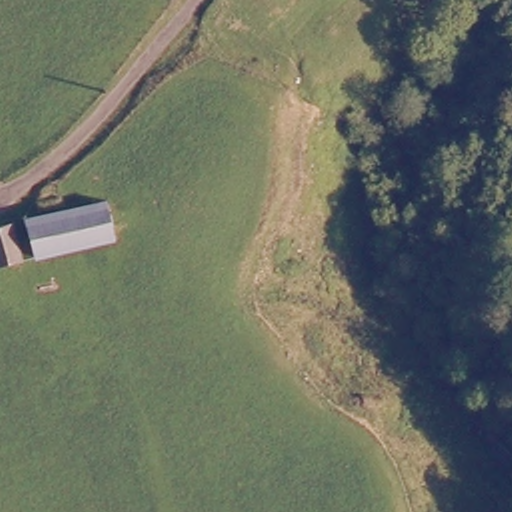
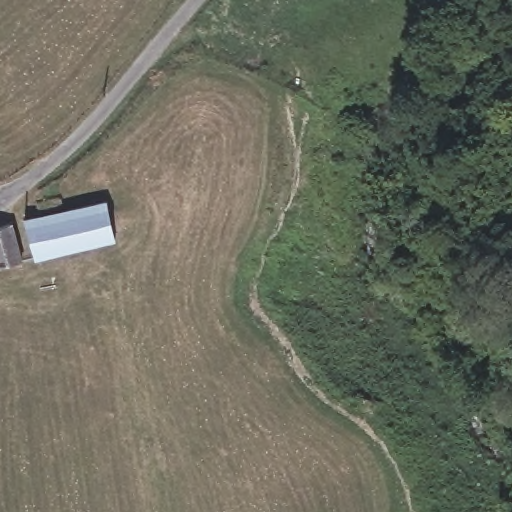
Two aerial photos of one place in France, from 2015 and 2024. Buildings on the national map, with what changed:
unchanged [(62,199),(67,212),(106,204),(117,240),(39,260),(32,222),(44,218),(39,205),(62,199)]
unchanged [(17,257),(8,260),(0,261),(0,219),(6,217),(17,257)]

